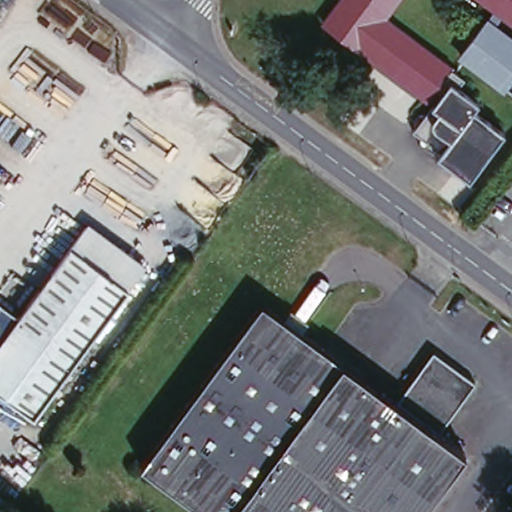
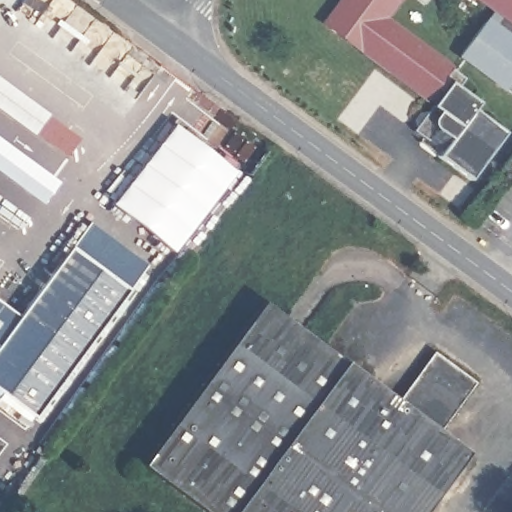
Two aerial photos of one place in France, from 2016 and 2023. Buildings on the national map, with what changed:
unchanged [(380,21),(414,47),(395,74),(360,47),(358,50),(322,23),(339,0),(396,0),(380,21)]
unchanged [(512,22),(483,0),(512,0),(512,22)]
unchanged [(486,15),(512,35),(512,81),(503,93),(457,56),(486,15)]
unchanged [(462,84),(457,91),(479,106),(474,112),(504,136),(471,181),(439,157),(443,152),(438,148),(436,151),(426,143),(426,139),(414,129),(416,127),(414,120),(418,115),(422,115),(437,96),(432,91),(426,98),(395,74),(414,47),(462,84)]
new [(73,139),(59,159),(0,117),(0,85),(73,139)]
new [(171,127),(232,173),(170,258),(108,213),(171,127)]
unchanged [(126,292),(69,248),(82,230),(140,274),(126,292)]
unchanged [(15,318),(69,248),(126,292),(29,419),(0,396),(0,306),(15,318)]
unchanged [(436,351),(477,382),(441,431),(466,451),(423,512),(203,512),(141,468),(260,302),(398,402),(436,351)]

